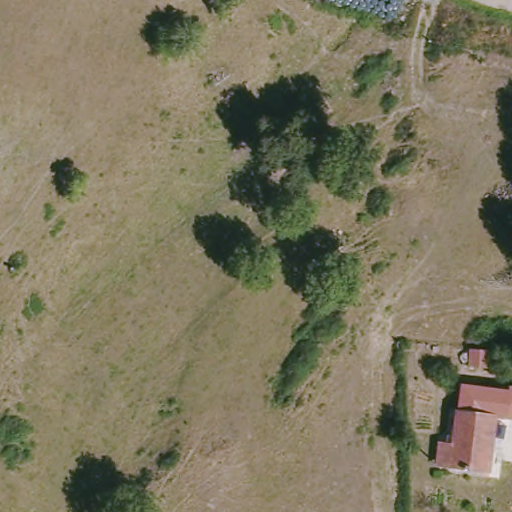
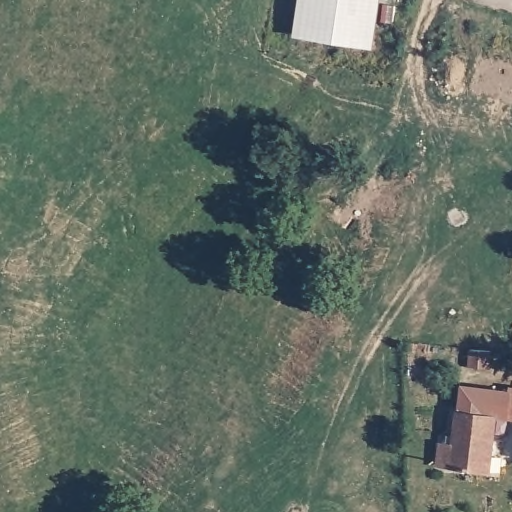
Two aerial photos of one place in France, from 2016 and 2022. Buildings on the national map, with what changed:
new [(300,0),(382,0),(375,49),(295,37),(300,0)]
unchanged [(499,350),(498,367),(478,366),(479,349),(499,350)]
unchanged [(460,387),(504,392),(505,386),(512,387),(512,417),(509,417),(498,415),(459,411),(460,387)]
unchanged [(498,415),(492,471),(440,465),(442,445),(455,446),(459,411),(498,415)]

